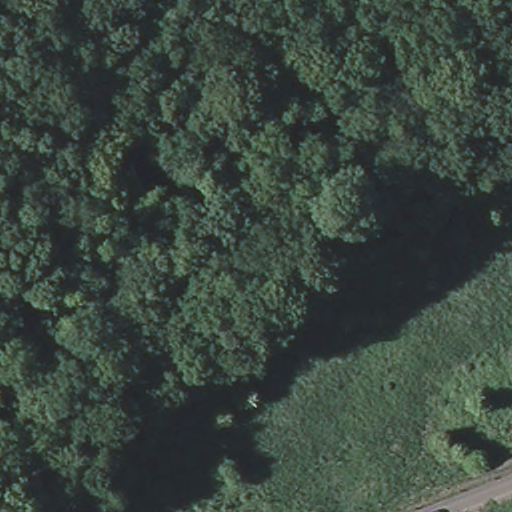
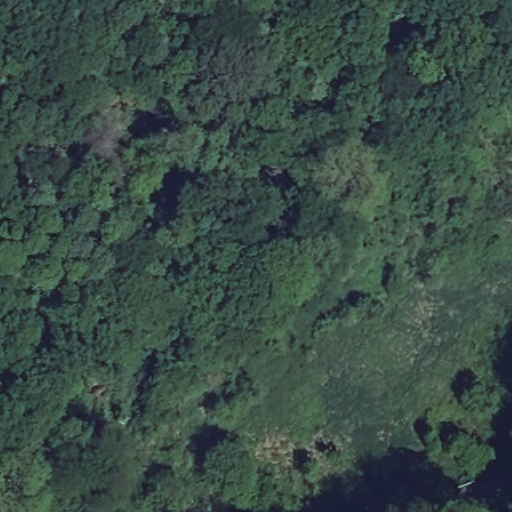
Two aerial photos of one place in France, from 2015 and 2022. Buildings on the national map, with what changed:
unchanged [(330,422),(332,439),(313,440),(311,423),(330,422)]

